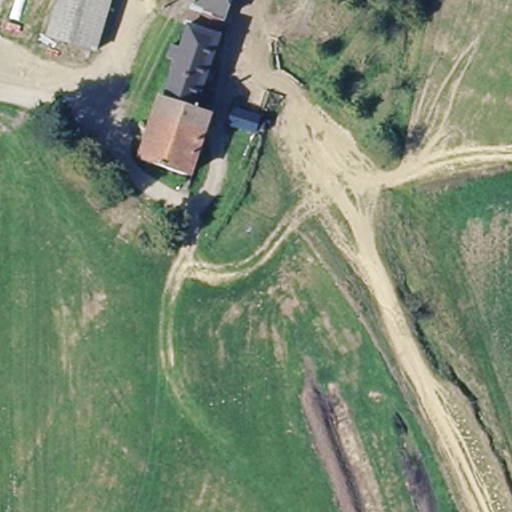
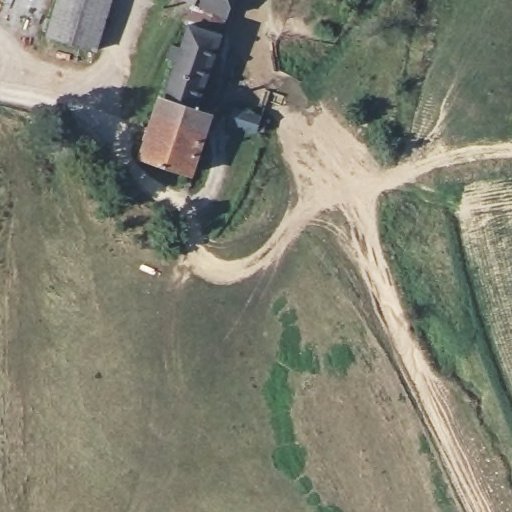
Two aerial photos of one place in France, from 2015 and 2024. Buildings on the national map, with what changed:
unchanged [(108,0),(91,55),(47,40),(59,0),(108,0)]
unchanged [(154,120),(170,67),(158,62),(162,48),(175,51),(191,5),(178,0),(234,0),(206,65),(192,115),(203,119),(182,181),(132,163),(148,120),(154,120)]
unchanged [(265,144),(239,134),(243,119),(268,128),(265,144)]

